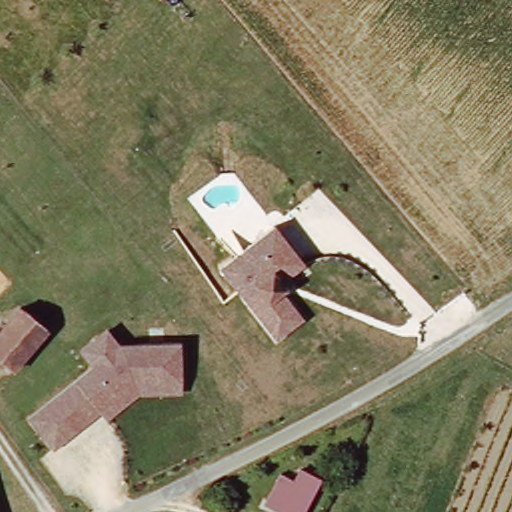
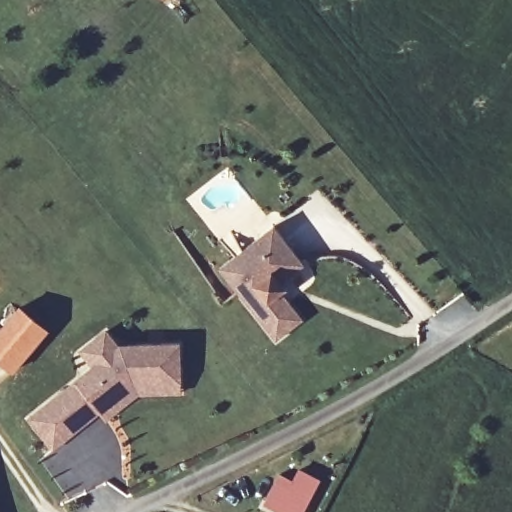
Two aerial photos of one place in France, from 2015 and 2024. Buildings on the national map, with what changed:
unchanged [(284,295),(303,322),(277,343),(232,281),(222,270),(257,242),(276,227),(305,267),(283,284),(289,291),(284,295)]
unchanged [(47,334),(15,374),(0,362),(0,333),(18,310),(47,334)]
unchanged [(53,452),(29,419),(95,368),(83,352),(108,333),(120,348),(180,344),(182,385),(182,394),(138,396),(107,421),(102,413),(100,415),(87,425),(53,452)]
unchanged [(287,492),(297,473),(318,484),(303,512),(273,512),(262,506),(273,485),(287,492)]

